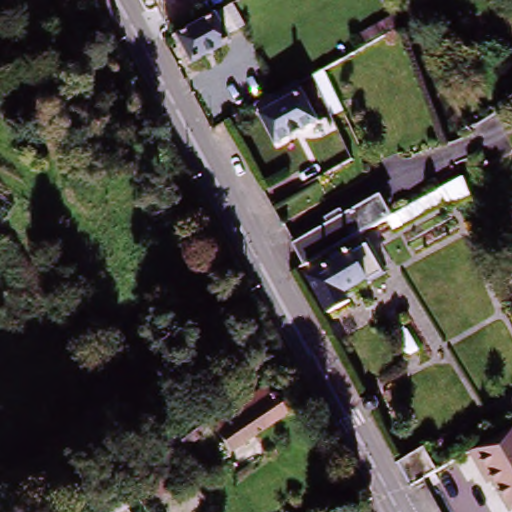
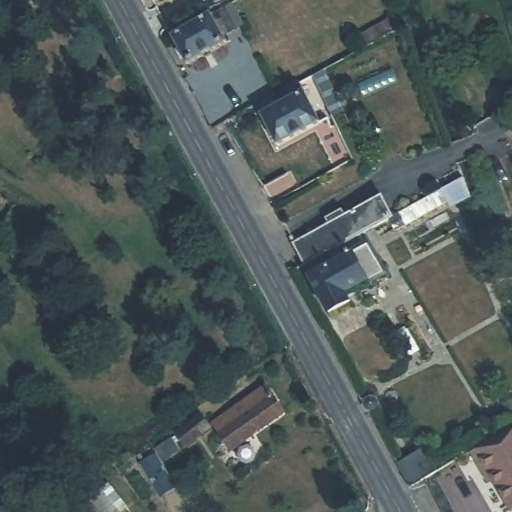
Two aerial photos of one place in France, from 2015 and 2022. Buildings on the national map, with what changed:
unchanged [(165,32),(197,15),(220,4),(233,28),(221,34),(211,19),(207,21),(218,40),(180,61),(165,32)]
unchanged [(363,41),(401,22),(403,32),(367,51),(363,41)]
unchanged [(331,120),(326,108),(313,79),(323,74),(342,115),(331,120)]
unchanged [(275,148),(256,110),(299,89),(317,125),(275,148)]
unchanged [(372,221),(381,216),(437,186),(450,180),(457,197),(436,208),(432,202),(380,232),(372,221)]
unchanged [(362,227),(353,231),(297,263),(282,239),(367,194),(381,216),(372,221),(362,227)]
unchanged [(339,290),(343,295),(320,308),(298,273),(325,260),(322,255),(332,249),(334,254),(359,240),(376,269),(339,290)]
unchanged [(377,411),(374,414),(370,415),(366,412),(362,406),(366,402),(370,400),(374,401),(378,404),(378,408),(377,411)]
unchanged [(225,437),(278,401),(290,419),(237,453),(225,437)]
unchanged [(512,422),(503,406),(512,401),(512,422)]
unchanged [(474,450),(512,428),(512,510),(509,512),(474,450)]
unchanged [(187,453),(210,438),(220,452),(197,467),(187,453)]
unchanged [(417,487),(401,459),(425,446),(441,472),(417,487)]
unchanged [(168,512),(165,512),(145,478),(164,468),(184,503),(168,512)]
unchanged [(108,511),(121,502),(129,512),(108,512),(108,511)]

